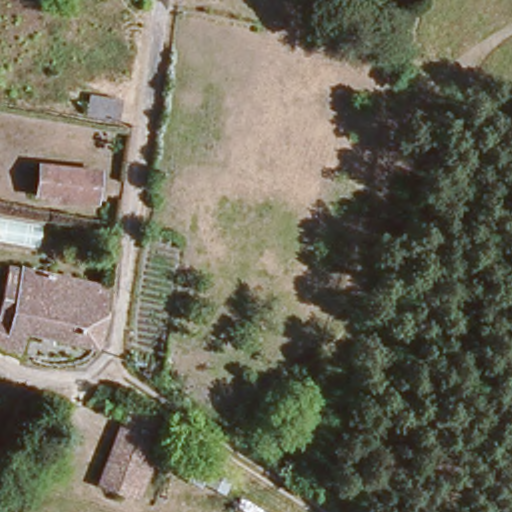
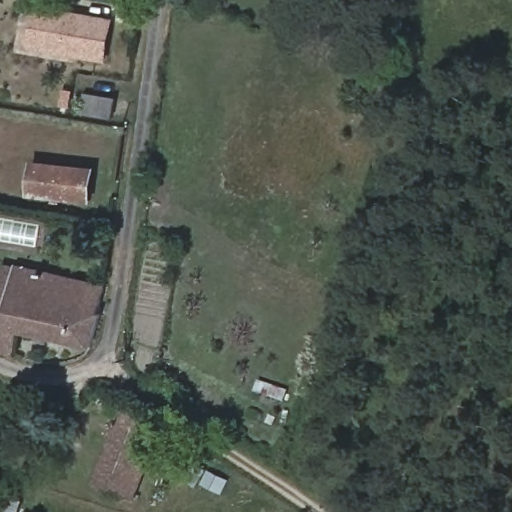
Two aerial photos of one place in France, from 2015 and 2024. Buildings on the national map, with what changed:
new [(37,6),(114,18),(108,62),(30,49),(37,6)]
unchanged [(113,97),(108,123),(77,117),(83,91),(113,97)]
unchanged [(86,197),(28,187),(31,158),(90,167),(86,197)]
unchanged [(95,276),(91,301),(87,320),(80,339),(9,322),(3,344),(0,343),(0,307),(10,259),(95,276)]
unchanged [(121,405),(164,423),(133,500),(89,482),(121,405)]

